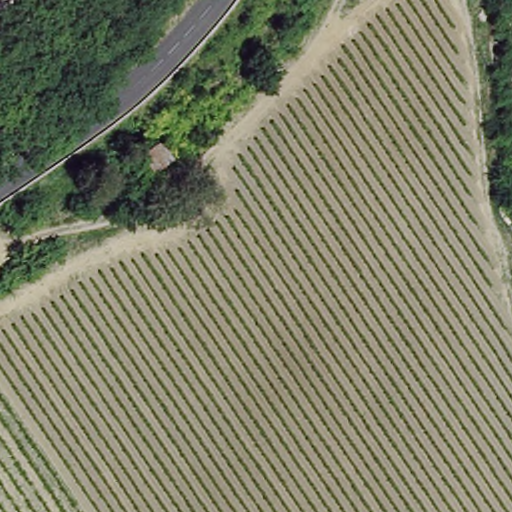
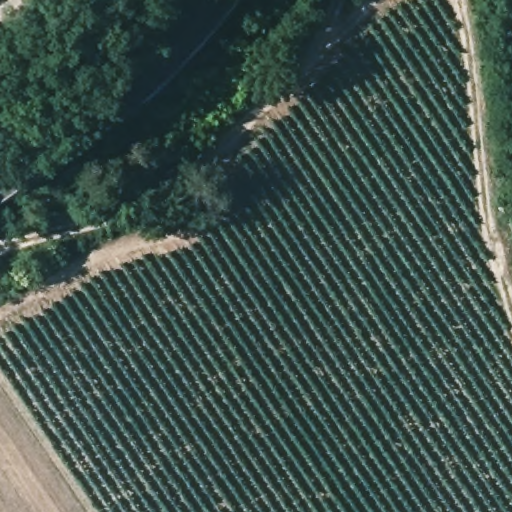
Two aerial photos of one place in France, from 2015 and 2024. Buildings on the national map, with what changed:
unchanged [(146,166),(164,152),(177,169),(159,183),(146,166)]

